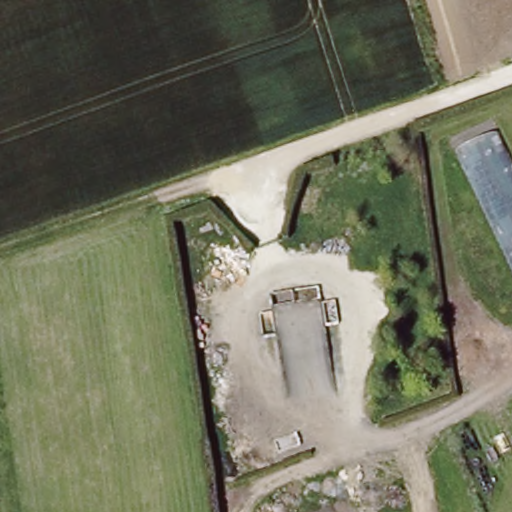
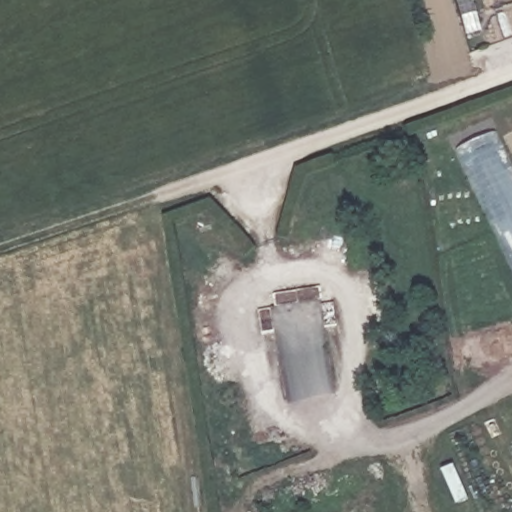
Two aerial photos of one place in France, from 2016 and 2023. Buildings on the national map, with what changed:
unchanged [(455,153),(497,130),(512,164),(512,266),(455,153)]

